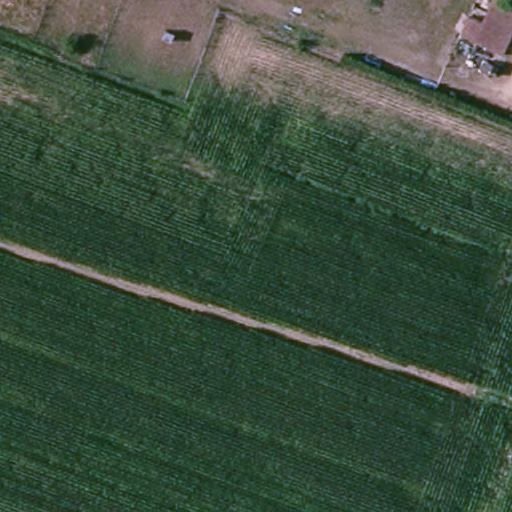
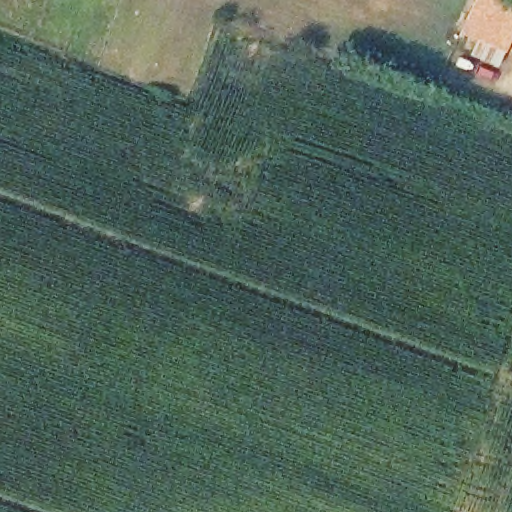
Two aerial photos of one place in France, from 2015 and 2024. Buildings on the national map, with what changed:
unchanged [(512,11),(512,24),(499,55),(472,43),(460,38),(466,24),(476,29),(481,31),(493,3),(512,11)]

